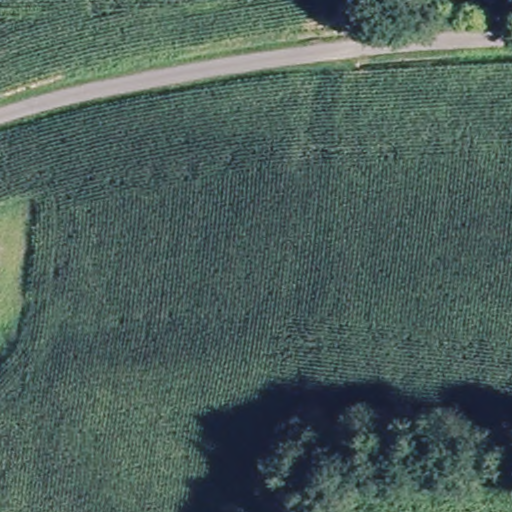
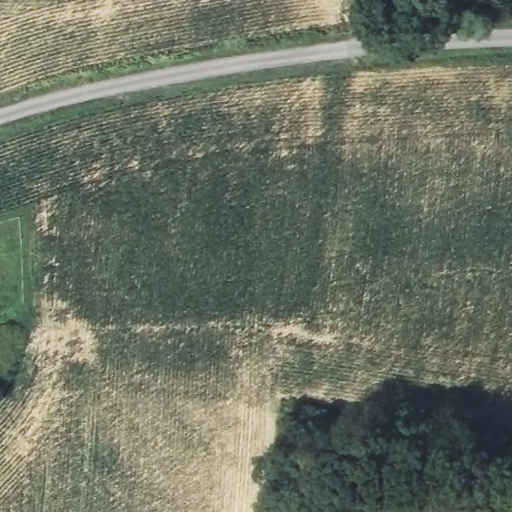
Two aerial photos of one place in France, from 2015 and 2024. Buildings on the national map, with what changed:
[]

